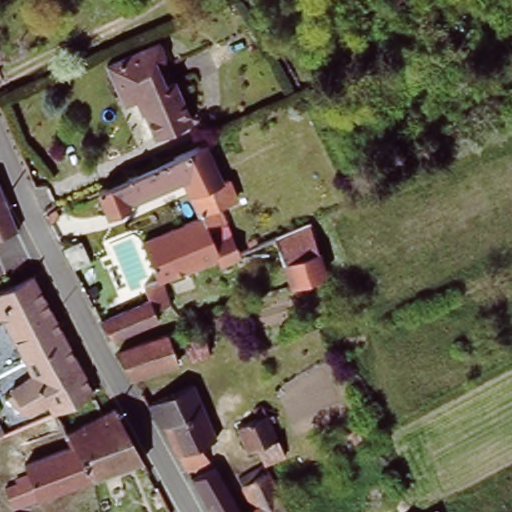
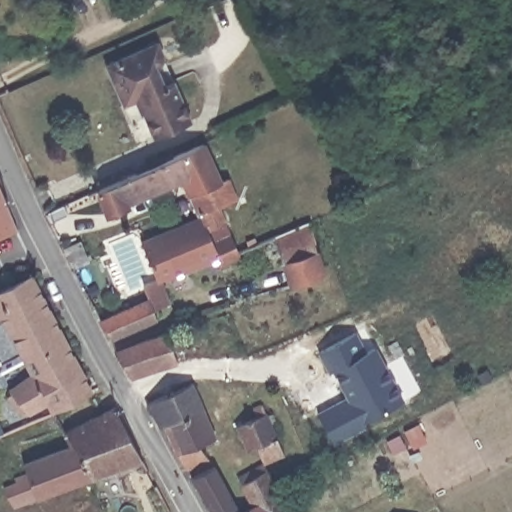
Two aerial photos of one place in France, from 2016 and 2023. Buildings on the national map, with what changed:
unchanged [(159,85),(170,82),(187,120),(147,136),(132,99),(115,105),(99,67),(142,47),(159,85)]
unchanged [(185,190),(179,177),(180,177),(169,151),(212,132),(222,157),(212,162),(217,176),(185,190)]
unchanged [(169,151),(180,177),(179,177),(158,186),(155,181),(122,196),(124,202),(104,211),(92,185),(169,151)]
unchanged [(230,193),(215,200),(223,219),(217,221),(222,232),(205,238),(195,216),(184,220),(172,195),(185,190),(217,176),(219,180),(223,177),(230,193)]
unchanged [(22,232),(0,240),(0,181),(22,232)]
unchanged [(230,250),(232,255),(212,262),(209,257),(154,278),(162,300),(147,306),(142,296),(136,282),(149,277),(135,240),(184,220),(195,216),(205,238),(222,232),(230,250)]
unchanged [(320,272),(318,278),(282,289),(265,242),(306,226),(320,272)]
unchanged [(62,252),(80,242),(89,261),(71,271),(62,252)]
unchanged [(105,266),(100,268),(96,262),(101,260),(105,266)]
unchanged [(90,392),(50,412),(44,401),(25,412),(23,411),(19,415),(5,398),(9,394),(8,392),(30,375),(1,321),(0,321),(0,298),(34,286),(90,392)]
unchanged [(100,337),(92,317),(142,296),(147,306),(150,315),(100,337)]
unchanged [(199,322),(208,353),(170,363),(165,345),(163,335),(199,322)]
new [(353,333),(365,352),(373,348),(402,402),(362,424),(364,427),(332,443),(317,415),(347,397),(332,372),(330,373),(318,352),(353,333)]
unchanged [(165,345),(170,363),(124,377),(109,353),(142,341),(163,335),(165,345)]
unchanged [(170,449),(161,428),(159,428),(145,406),(189,386),(212,437),(199,445),(207,462),(185,474),(170,449)]
unchanged [(255,448),(246,452),(235,428),(259,415),(255,408),(260,406),(284,455),(264,465),(255,448)]
unchanged [(139,468),(90,486),(61,435),(110,415),(139,468)]
unchanged [(2,435),(0,436),(0,429),(2,435)]
unchanged [(90,486),(20,512),(11,512),(4,493),(13,488),(13,486),(23,481),(12,451),(43,438),(45,442),(61,435),(90,486)]
unchanged [(287,512),(250,512),(254,510),(237,480),(264,465),(280,497),(287,512)]
unchanged [(189,481),(213,468),(238,512),(207,512),(189,481)]

